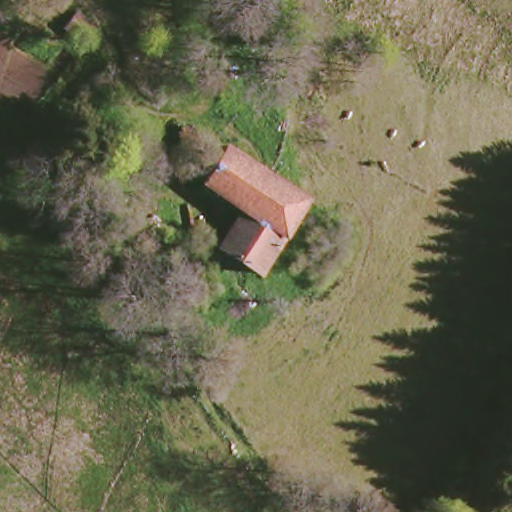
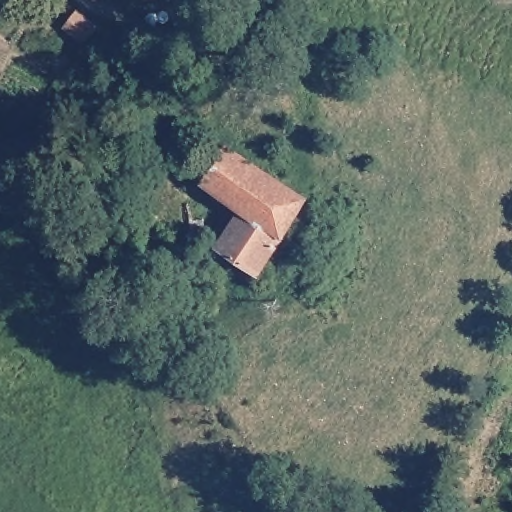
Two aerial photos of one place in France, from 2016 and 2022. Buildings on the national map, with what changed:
unchanged [(90,45),(69,29),(82,13),(100,31),(90,45)]
unchanged [(250,277),(217,253),(242,219),(239,214),(233,209),(195,185),(221,140),(304,196),(283,229),(250,277)]

